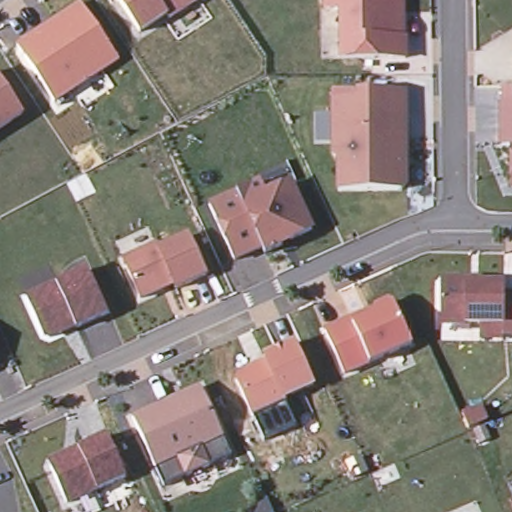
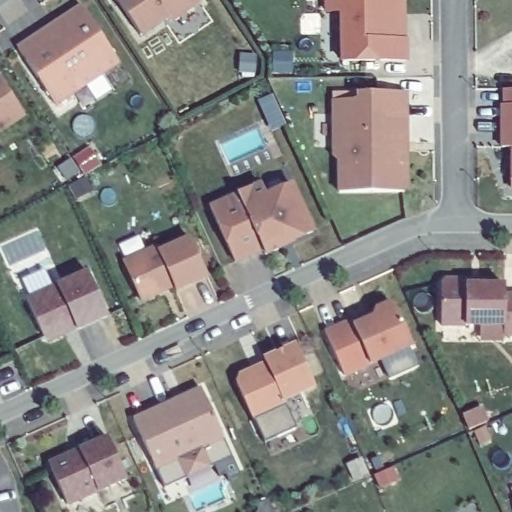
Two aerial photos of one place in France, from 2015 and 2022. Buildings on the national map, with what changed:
unchanged [(166,22),(163,17),(136,35),(112,0),(194,0),(195,2),(166,22)]
unchanged [(343,61),(342,11),(327,12),(327,0),(402,0),(404,2),(405,41),(407,41),(407,61),(343,61)]
unchanged [(78,6),(115,62),(51,105),(13,49),(78,6)]
unchanged [(25,117),(0,133),(0,78),(25,117)]
unchanged [(336,156),(334,101),(359,100),(359,92),(407,92),(408,187),(403,192),(341,194),(341,161),(336,156)]
unchanged [(511,149),(500,149),(501,104),(512,104),(512,191),(511,191),(511,149)]
unchanged [(263,180),(268,192),(293,180),(314,227),(293,237),(291,233),(283,237),(285,242),(266,251),(264,245),(236,258),(211,203),(263,180)]
unchanged [(209,282),(173,296),(171,291),(141,302),(124,260),(156,245),(159,250),(190,236),(209,282)]
unchanged [(108,319),(45,343),(27,297),(88,272),(108,319)]
unchanged [(456,282),(461,287),(499,287),(499,297),(512,297),(512,337),(499,337),(499,327),(436,327),(436,287),(441,282),(456,282)]
unchanged [(347,322),(349,327),(370,317),(369,317),(372,310),(384,305),(390,307),(408,346),(340,377),(321,333),(347,322)]
unchanged [(234,377),(262,365),(260,361),(291,347),(309,388),(279,402),(281,406),(249,421),(232,384),(234,377)]
unchanged [(176,397),(177,400),(186,396),(184,392),(202,385),(233,453),(211,463),(202,445),(179,456),(188,473),(165,484),(134,416),(176,397)]
unchanged [(40,456),(43,450),(98,425),(116,466),(57,492),(40,456)]

